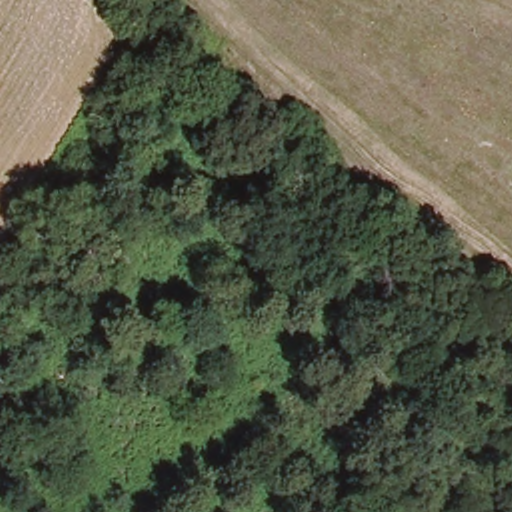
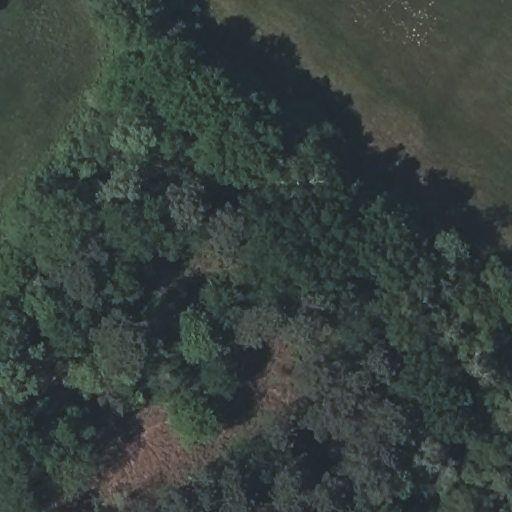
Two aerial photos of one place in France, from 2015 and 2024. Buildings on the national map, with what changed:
[]

